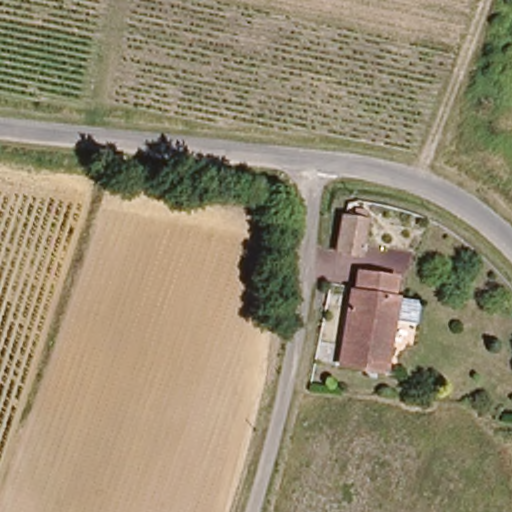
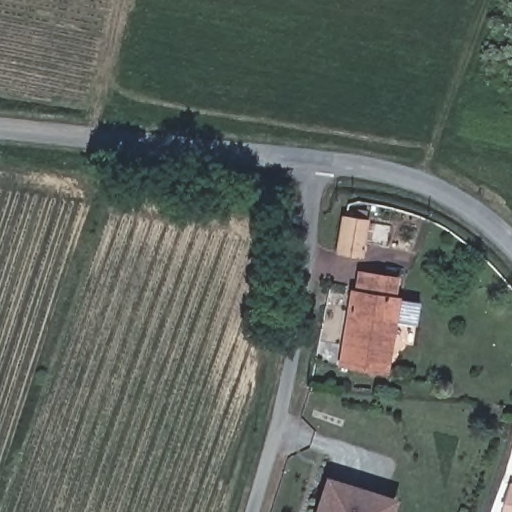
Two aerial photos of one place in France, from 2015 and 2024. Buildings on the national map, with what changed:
unchanged [(361,257),(339,253),(345,219),(367,223),(361,257)]
unchanged [(415,306),(413,327),(388,324),(378,373),(333,363),(347,292),(353,293),(354,284),(357,271),(390,278),(389,288),(386,301),(415,306)]
new [(314,512),(326,475),(400,498),(395,512),(314,512)]
new [(504,512),(507,482),(512,483),(512,512),(504,512)]

